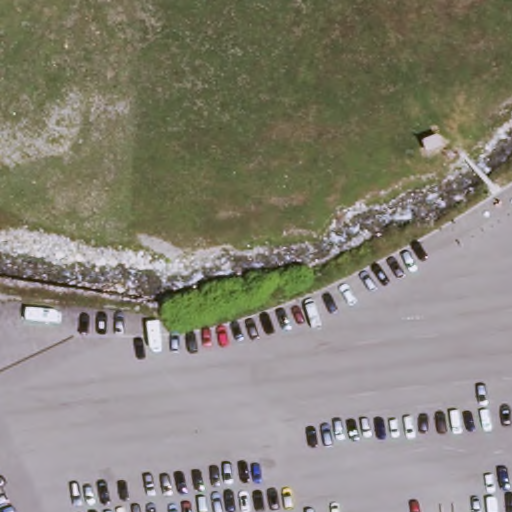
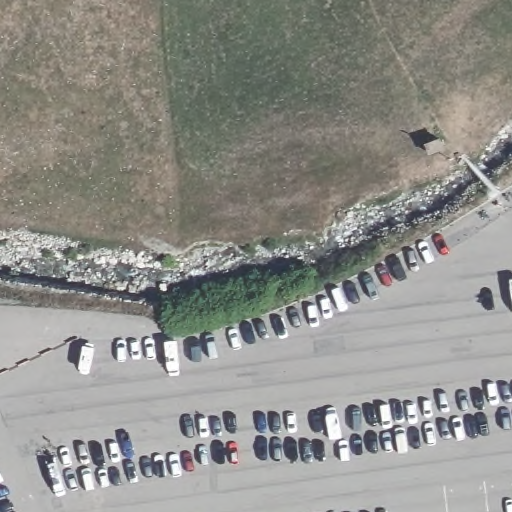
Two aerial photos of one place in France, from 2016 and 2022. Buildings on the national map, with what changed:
[]

